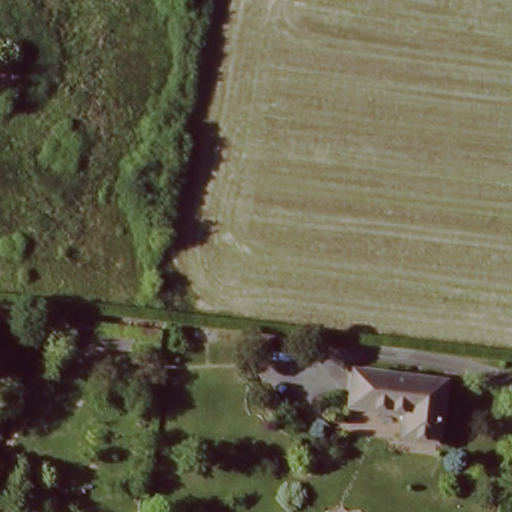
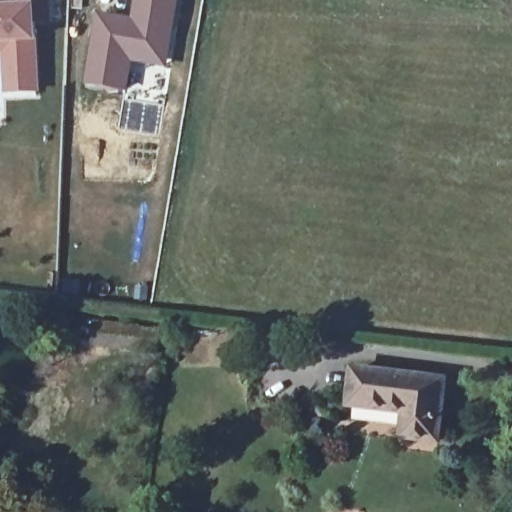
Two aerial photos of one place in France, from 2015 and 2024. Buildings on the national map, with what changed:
new [(40,24),(41,44),(37,44),(41,93),(6,94),(5,56),(0,56),(0,5),(8,5),(9,0),(53,0),(55,24),(40,24)]
new [(134,62),(128,91),(85,85),(99,12),(134,17),(137,0),(182,0),(168,68),(134,62)]
unchanged [(98,321),(165,330),(162,355),(97,347),(98,321)]
unchanged [(444,378),(440,437),(398,433),(400,408),(350,404),(353,371),(444,378)]

